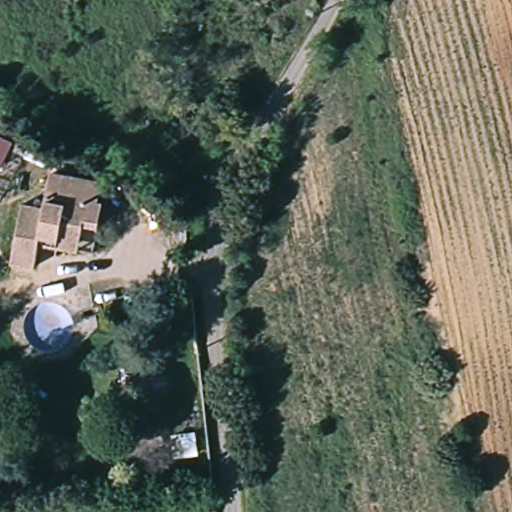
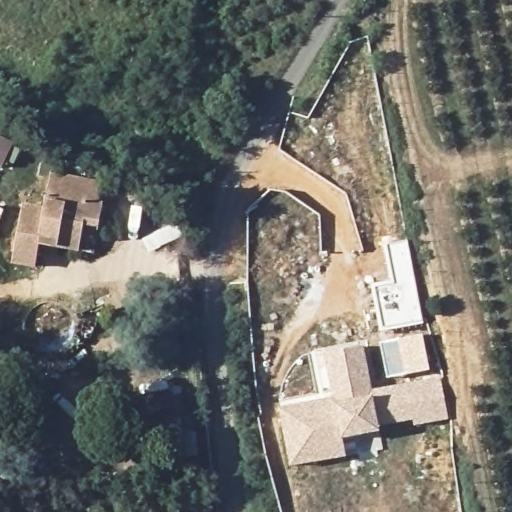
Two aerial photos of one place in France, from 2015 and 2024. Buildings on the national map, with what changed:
new [(0,138),(13,144),(3,167),(0,166),(0,138)]
unchanged [(77,246),(41,240),(35,267),(10,262),(20,207),(41,210),(48,177),(96,186),(93,203),(99,205),(95,227),(91,248),(77,246)]
new [(381,331),(371,284),(391,280),(384,244),(408,239),(424,323),(381,331)]
new [(379,342),(399,339),(423,334),(429,370),(406,374),(388,378),(379,342)]
new [(324,353),(363,346),(372,390),(438,378),(448,420),(416,428),(414,420),(379,431),(343,439),(346,457),(291,468),(279,408),(333,398),(324,353)]

